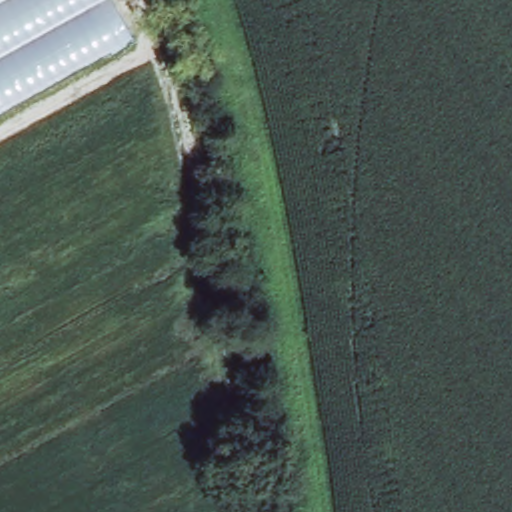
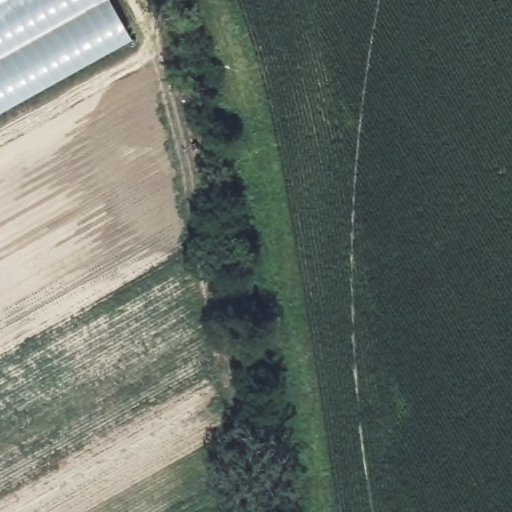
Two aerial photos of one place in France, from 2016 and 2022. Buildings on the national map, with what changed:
unchanged [(108,0),(131,41),(0,114),(0,0),(108,0)]

